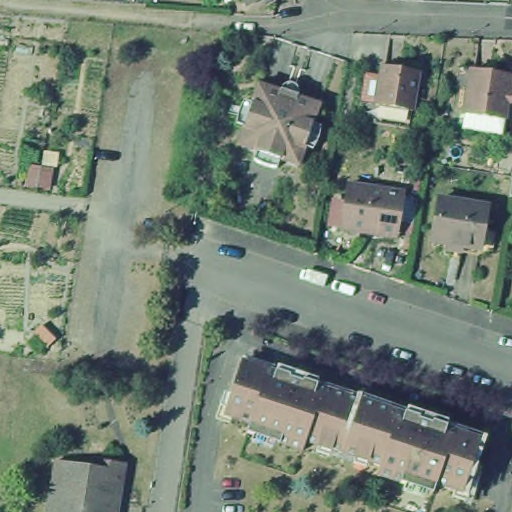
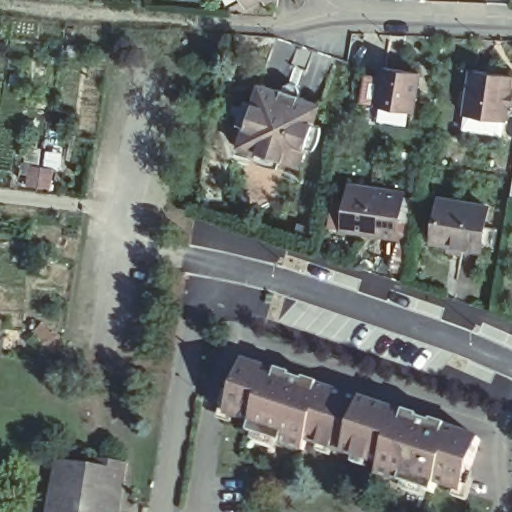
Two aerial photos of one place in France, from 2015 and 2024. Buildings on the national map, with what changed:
unchanged [(258,1),(241,10),(235,0),(270,0),(260,5),(258,1)]
unchanged [(464,69),(504,75),(497,119),(458,112),(464,69)]
unchanged [(382,70),(418,75),(411,115),(376,109),(382,70)]
unchanged [(238,130),(233,127),(233,112),(240,104),(246,105),(252,85),(274,92),(274,91),(288,85),(293,96),(292,98),(312,105),(306,125),(311,127),(311,140),(304,151),(298,150),(293,167),(274,161),(272,166),(259,166),(248,159),(251,154),(232,148),(238,130)]
unchanged [(507,190),(508,183),(512,184),(512,202),(505,200),(507,190)]
unchanged [(343,185),(397,195),(390,235),(363,230),(362,235),(334,230),(343,185)]
unchanged [(432,200),(478,207),(472,250),(425,244),(432,200)]
unchanged [(233,365),(266,375),(266,372),(281,377),(281,380),(293,385),(294,382),(309,387),(309,390),(394,418),(396,416),(411,421),(410,424),(422,427),(423,425),(438,430),(437,433),(472,445),(454,497),(428,488),(425,497),(369,478),(372,470),(297,444),(294,453),(238,434),(241,425),(216,417),(233,365)]
unchanged [(83,460),(123,466),(115,512),(47,512),(55,464),(63,465),(81,468),(83,460)]

